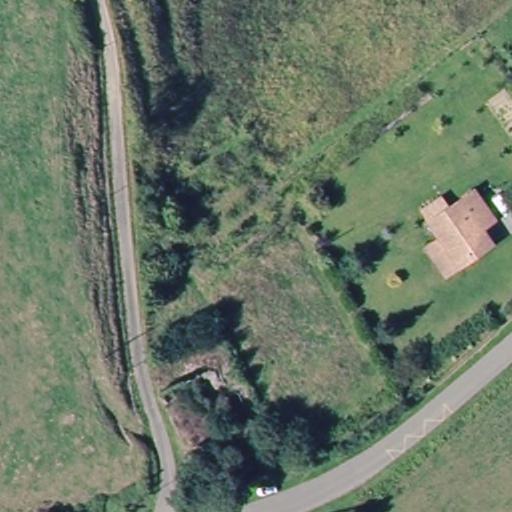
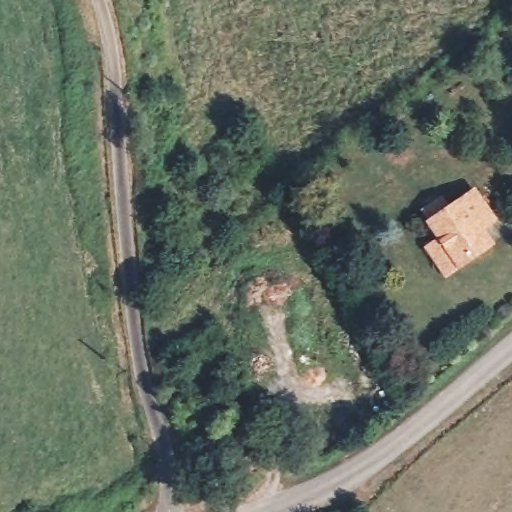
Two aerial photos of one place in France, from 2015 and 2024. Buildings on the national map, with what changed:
unchanged [(432,228),(478,197),(496,225),(483,234),(493,249),(461,270),(449,279),(432,253),(444,245),(432,228)]

